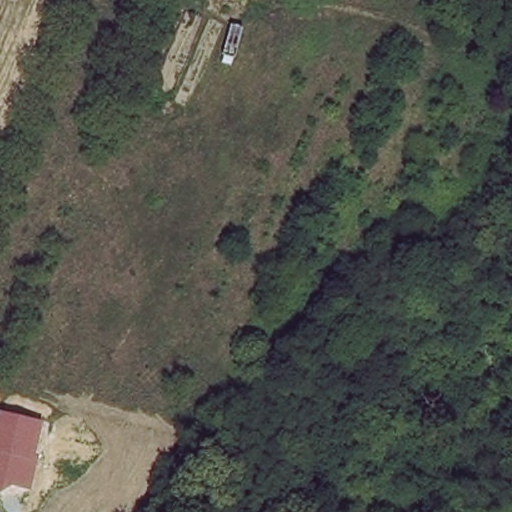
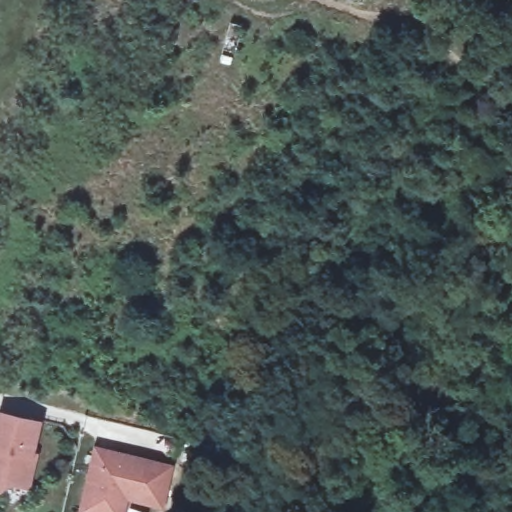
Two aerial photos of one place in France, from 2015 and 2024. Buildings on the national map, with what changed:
unchanged [(34,452),(38,452),(32,490),(14,486),(0,492),(0,413),(41,422),(34,452)]
new [(163,508),(127,500),(124,512),(79,512),(94,446),(173,463),(163,508)]

